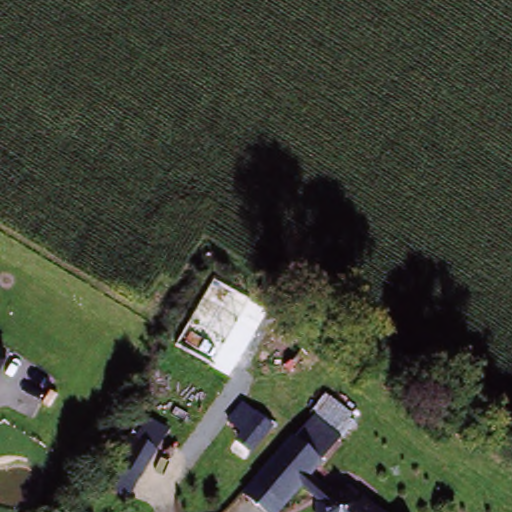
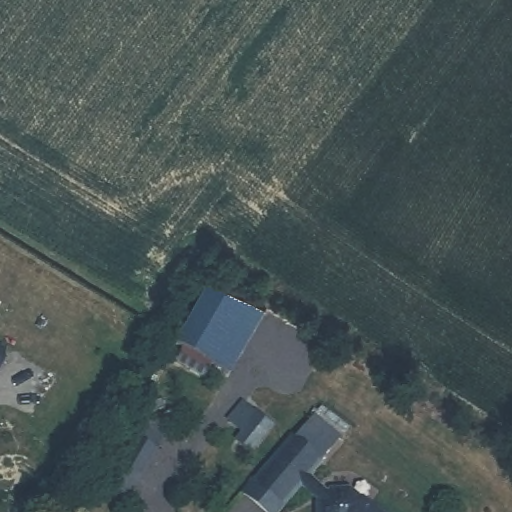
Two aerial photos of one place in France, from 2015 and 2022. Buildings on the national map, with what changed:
new [(213,280),(267,311),(229,377),(175,346),(213,280)]
unchanged [(7,366),(0,376),(0,348),(3,350),(7,366)]
unchanged [(310,478),(326,490),(348,487),(379,512),(315,512),(315,502),(302,490),(282,512),(261,512),(242,493),(288,435),(293,440),(330,396),(357,417),(310,478)]
new [(247,425),(235,417),(243,405),(270,424),(257,442),(242,432),(247,425)]
unchanged [(130,501),(102,486),(128,432),(135,438),(145,417),(168,430),(130,501)]

